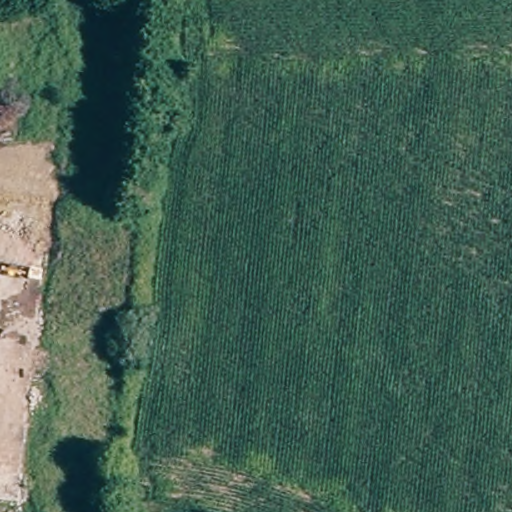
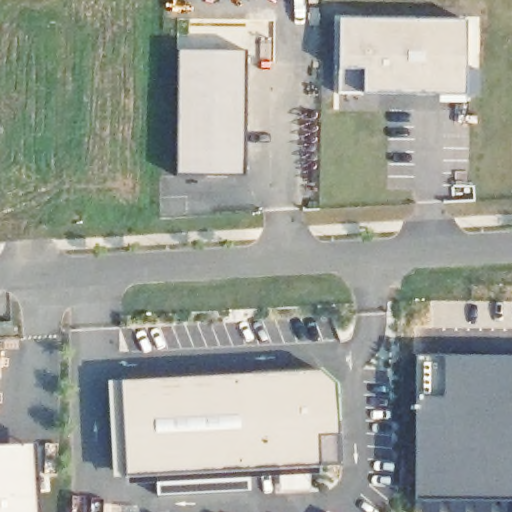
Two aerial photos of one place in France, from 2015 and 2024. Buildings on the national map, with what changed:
new [(467,95),(364,94),(366,69),(340,67),(340,18),(469,20),(467,95)]
new [(248,52),(246,176),(180,175),(181,52),(248,52)]
new [(512,355),(512,502),(413,501),(414,354),(512,355)]
new [(323,371),(338,386),(339,436),(340,462),(322,462),(323,466),(251,470),(251,490),(157,494),(156,474),(129,475),(114,477),(108,381),(323,371)]
new [(38,445),(42,512),(0,512),(0,447),(38,445)]

